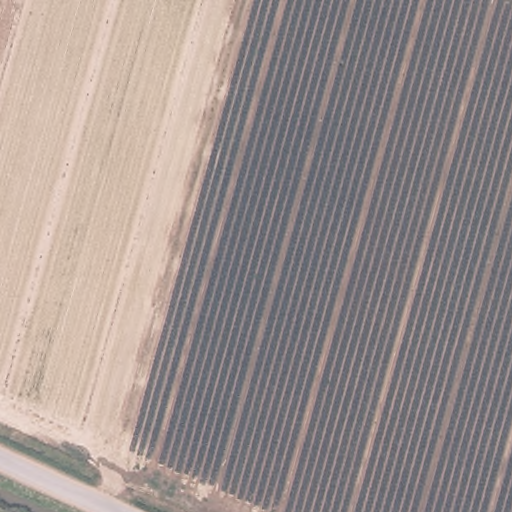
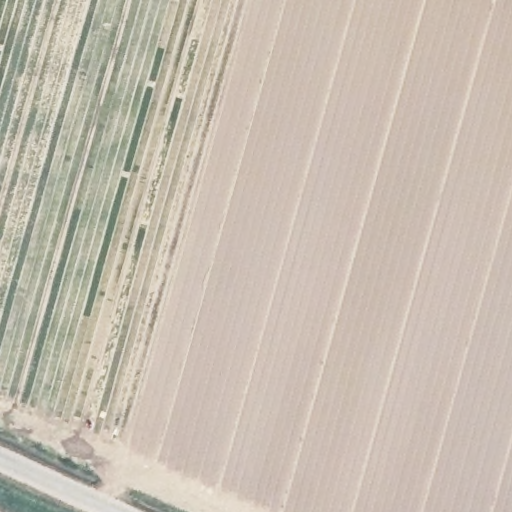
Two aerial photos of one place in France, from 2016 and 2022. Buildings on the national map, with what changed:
[]

